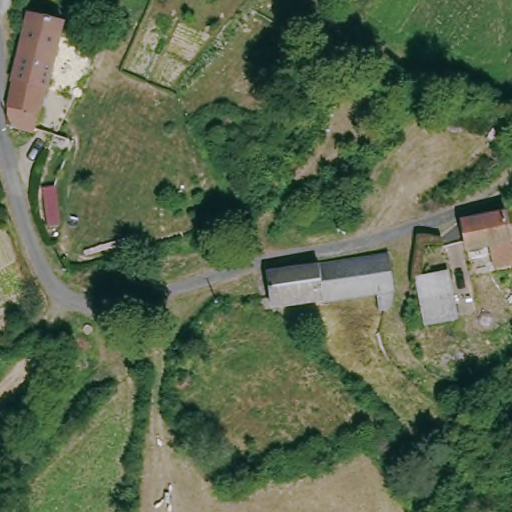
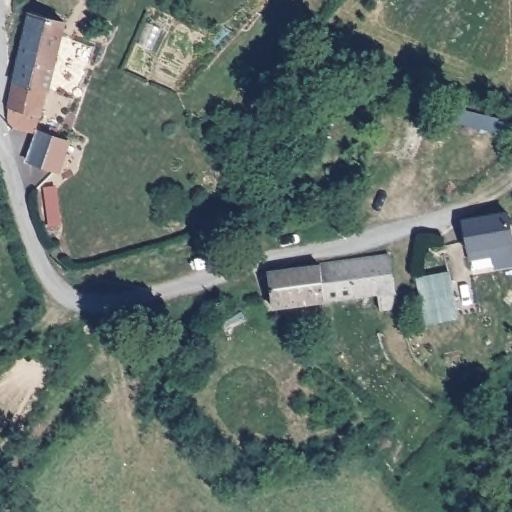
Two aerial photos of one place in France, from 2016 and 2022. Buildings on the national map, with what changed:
unchanged [(22,15),(60,25),(36,133),(7,123),(7,89),(17,39),(22,15)]
unchanged [(507,218),(512,260),(512,264),(487,268),(484,250),(463,252),(461,227),(460,223),(477,220),(494,218),(503,218),(507,218)]
unchanged [(388,300),(385,308),(370,310),(367,295),(265,309),(262,277),(317,268),(387,258),(388,300)]
unchanged [(452,312),(422,320),(412,277),(443,270),(452,312)]

